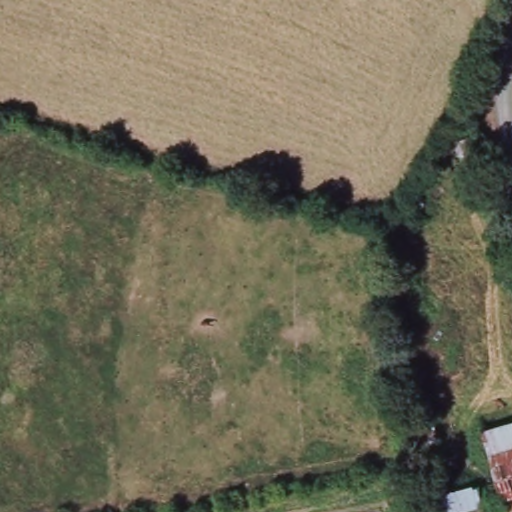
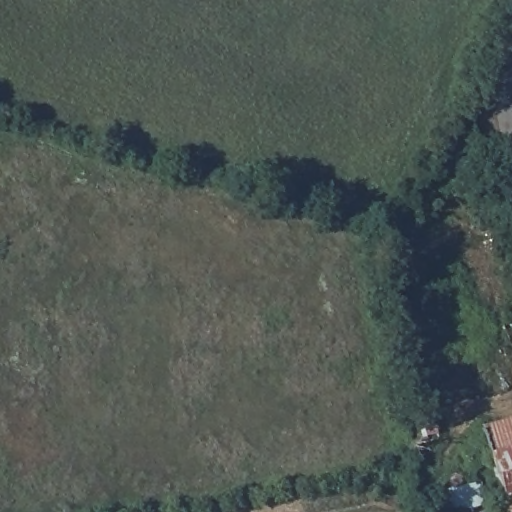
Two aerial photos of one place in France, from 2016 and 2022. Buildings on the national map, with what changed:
unchanged [(483,429),(512,421),(512,445),(490,451),(486,437),(483,429)]
unchanged [(512,512),(508,512),(490,451),(512,445),(512,512)]

